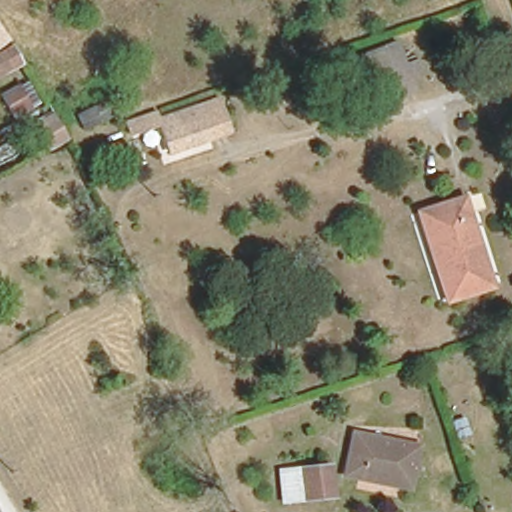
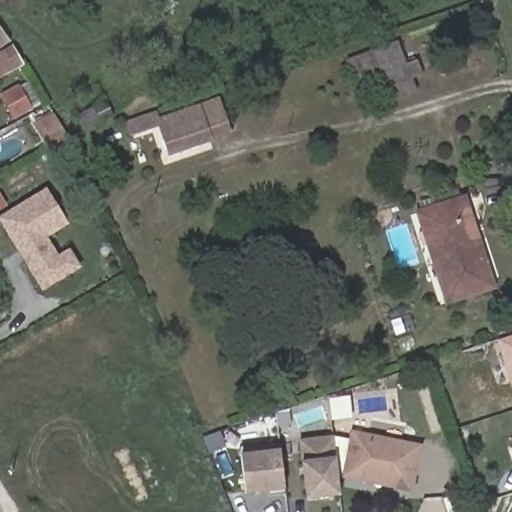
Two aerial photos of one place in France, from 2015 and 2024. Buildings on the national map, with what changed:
unchanged [(416,99),(394,106),(385,78),(352,86),(342,56),(400,39),(416,99)]
unchanged [(12,60),(0,67),(0,41),(2,40),(12,60)]
unchanged [(2,117),(0,113),(0,95),(20,85),(30,102),(2,117)]
unchanged [(169,150),(159,122),(130,131),(126,119),(155,110),(158,120),(199,106),(217,99),(223,97),(233,127),(228,129),(209,135),(210,136),(169,150)]
unchanged [(47,146),(36,123),(52,113),(65,136),(47,146)]
new [(0,216),(46,190),(69,225),(47,238),(58,255),(67,249),(80,269),(41,292),(0,219),(0,216)]
unchanged [(462,197),(492,282),(452,295),(421,210),(462,197)]
new [(511,388),(495,339),(512,334),(512,388),(511,388)]
unchanged [(418,436),(412,475),(346,463),(352,424),(418,436)]
new [(336,456),(340,495),(306,499),(302,461),(300,438),(332,435),(336,456)]
new [(281,449),(286,490),(245,495),(240,453),(240,445),(280,441),(281,449)]
demolished [(298,470),(324,467),(328,491),(302,494),(280,496),(276,473),(298,470)]

